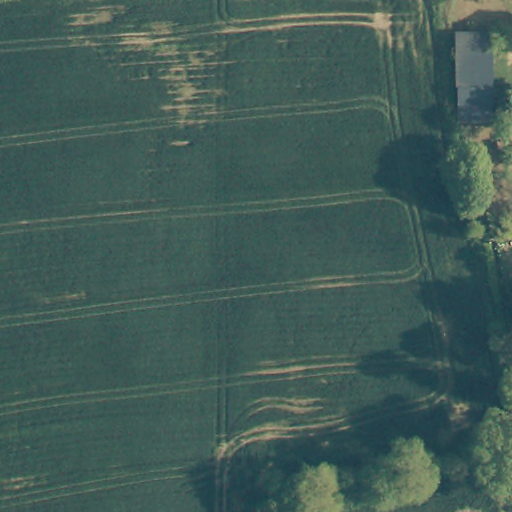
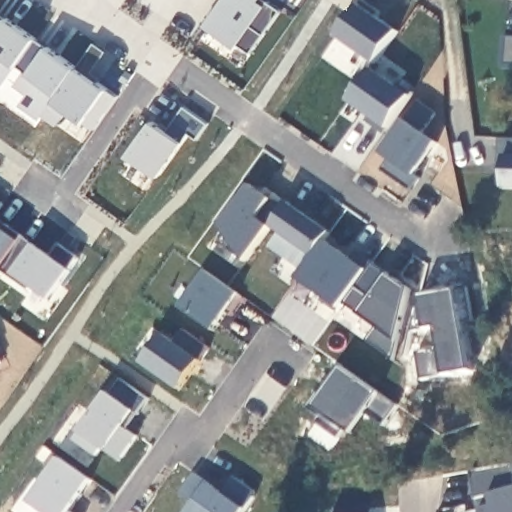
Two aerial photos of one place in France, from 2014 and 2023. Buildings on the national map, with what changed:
new [(239,44),(237,49),(205,26),(223,0),(268,0),(283,11),(253,54),(239,44)]
new [(364,0),(382,14),(379,18),(399,32),(376,65),(337,38),(364,0)]
new [(37,37),(1,89),(0,88),(0,11),(37,37)]
demolished [(491,29),(492,107),(492,117),(458,117),(457,111),(456,29),(491,29)]
new [(42,118),(21,104),(29,92),(16,84),(26,70),(18,64),(37,37),(78,66),(42,118)]
new [(508,37),(512,38),(512,66),(506,66),(508,37)]
new [(93,71),(102,77),(99,82),(78,66),(95,42),(107,51),(93,71)]
new [(78,66),(119,96),(95,129),(68,110),(58,124),(44,114),(78,66)]
new [(372,73),(397,88),(400,84),(413,93),(384,135),(366,121),(370,116),(352,103),(372,73)]
new [(436,115),(422,133),(437,144),(415,175),(421,179),(411,192),(382,171),(390,159),(383,154),(420,103),(436,115)]
new [(167,131),(186,106),(210,122),(198,140),(189,134),(159,177),(129,156),(154,122),(167,131)]
new [(512,189),(505,189),(506,156),(512,156),(512,189)]
new [(271,199),(275,194),(289,204),(247,262),(228,250),(237,238),(221,227),(251,185),(271,199)]
new [(263,194),(268,189),(275,194),(271,199),(263,194)]
new [(3,204),(0,209),(0,202),(3,204)]
new [(291,204),(331,230),(305,271),(271,249),(282,232),(274,227),(291,204)]
new [(20,242),(33,251),(37,246),(52,257),(61,246),(78,258),(70,269),(50,298),(2,266),(0,268),(0,228),(20,242)]
new [(326,241),(351,259),(357,252),(373,263),(338,312),(322,301),(324,297),(298,280),(304,272),(326,241)]
new [(374,264),(411,291),(395,361),(335,318),(374,264)]
new [(204,268),(245,298),(231,317),(227,313),(214,331),(178,306),(204,268)]
new [(440,348),(437,329),(412,333),(407,357),(406,357),(417,310),(422,308),(420,297),(467,288),(473,323),(463,325),(472,372),(422,382),(417,353),(440,348)]
new [(174,342),(183,328),(209,347),(180,389),(142,362),(162,334),(174,342)]
new [(1,362),(0,362),(0,359),(1,362)]
new [(96,455),(73,440),(107,392),(109,393),(120,377),(149,398),(137,415),(133,412),(123,426),(137,436),(119,461),(102,448),(96,455)]
new [(123,426),(133,412),(137,415),(127,429),(123,426)]
new [(28,501),(59,457),(91,480),(70,511),(72,512),(44,512),(28,501)]
new [(512,512),(473,512),(493,507),(477,511),(475,501),(470,471),(512,464),(512,512)]
new [(194,504),(179,493),(194,473),(221,492),(233,476),(254,491),(253,497),(243,512),(188,512),(194,504)]

